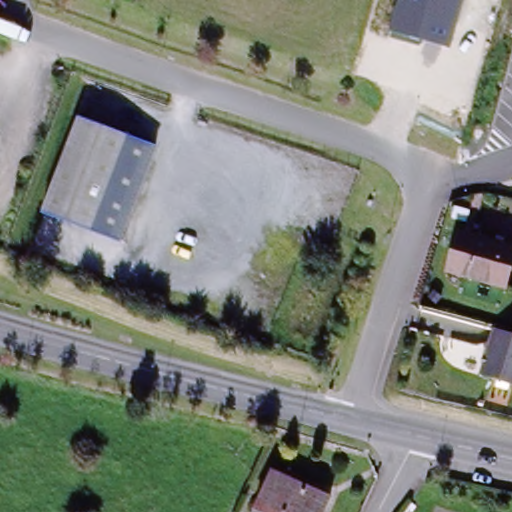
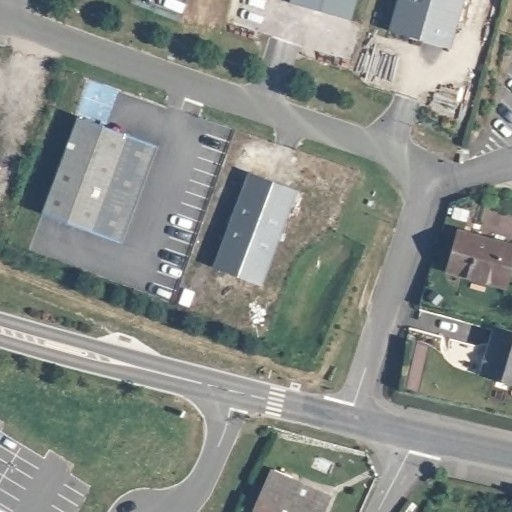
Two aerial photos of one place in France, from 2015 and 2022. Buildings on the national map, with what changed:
new [(289,0),(353,0),(346,22),(288,4),(289,0)]
unchanged [(464,0),(452,48),(390,29),(397,0),(464,0)]
unchanged [(131,135),(90,230),(43,210),(83,114),(131,135)]
unchanged [(158,146),(122,243),(90,230),(131,135),(158,146)]
new [(251,169),(300,189),(261,286),(212,267),(251,169)]
unchanged [(461,231),(512,245),(512,263),(506,283),(451,267),(461,231)]
unchanged [(494,323),(505,326),(512,328),(512,379),(481,371),(494,323)]
unchanged [(277,471),(326,493),(317,512),(258,512),(277,471)]

